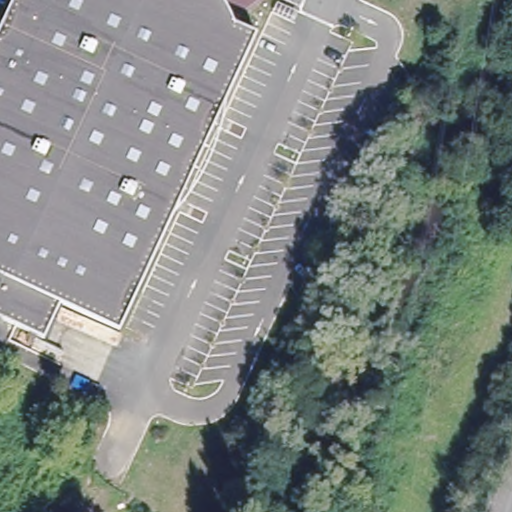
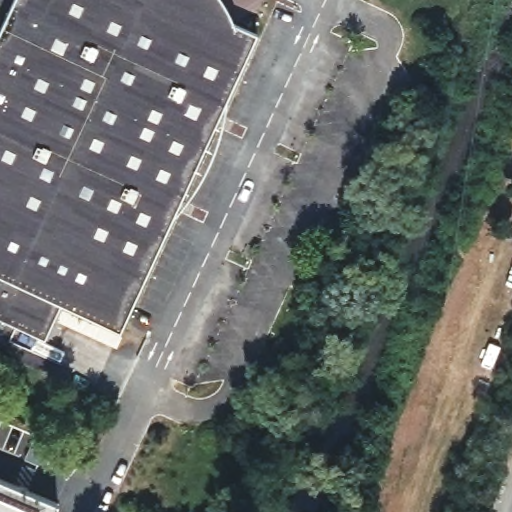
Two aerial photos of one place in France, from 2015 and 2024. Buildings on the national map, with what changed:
unchanged [(0,26),(12,0),(228,0),(233,15),(258,26),(120,325),(61,298),(46,333),(0,313),(0,26)]
new [(54,512),(0,512),(0,478),(57,502),(54,512)]

